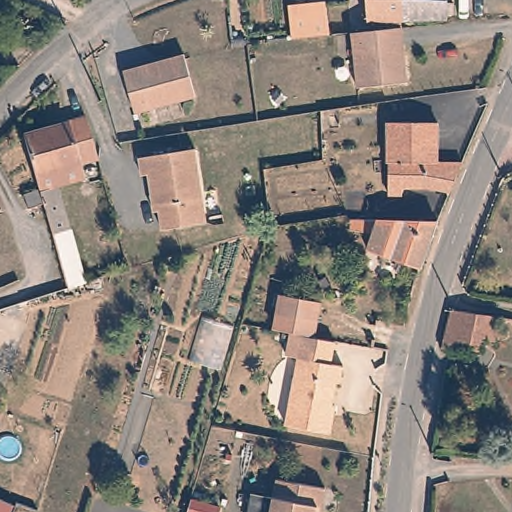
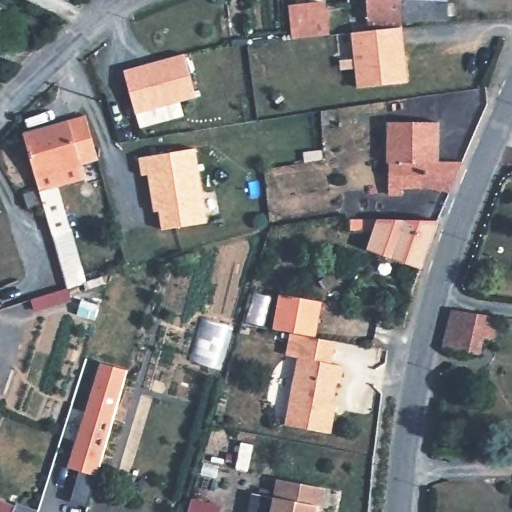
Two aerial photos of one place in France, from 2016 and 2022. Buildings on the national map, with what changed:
unchanged [(367,20),(366,0),(403,0),(404,21),(367,20)]
unchanged [(447,20),(405,21),(404,21),(403,0),(448,0),(447,20)]
unchanged [(329,32),(329,35),(292,39),(289,8),(325,4),(329,32)]
unchanged [(351,33),(401,27),(403,44),(398,45),(399,55),(395,59),(396,64),(405,63),(407,82),(357,87),(351,33)]
unchanged [(195,97),(169,104),(135,113),(130,96),(123,70),(140,66),(161,60),(184,54),(195,97)]
unchanged [(23,134),(85,116),(95,149),(97,158),(78,164),(83,179),(57,186),(69,229),(51,234),(23,134)]
unchanged [(432,161),(457,162),(445,192),(444,192),(421,186),(397,186),(397,194),(384,193),(384,162),(383,162),(383,122),(432,122),(432,161)]
unchanged [(195,148),(206,222),(162,229),(153,173),(142,175),(139,157),(195,148)]
unchanged [(416,268),(362,249),(368,232),(346,228),(346,218),(432,221),(416,268)]
unchanged [(51,234),(69,229),(84,282),(66,288),(51,234)]
unchanged [(322,321),(281,313),(284,294),(326,302),(322,321)]
unchanged [(495,342),(472,338),(469,353),(448,349),(441,348),(451,309),(499,317),(495,342)]
unchanged [(290,424),(303,357),(291,354),(295,333),(340,341),(336,363),(348,365),(345,382),(342,382),(336,413),(339,413),(335,433),(290,424)]
new [(66,466),(70,454),(101,362),(129,370),(101,463),(97,475),(88,506),(70,501),(79,469),(66,466)]
unchanged [(274,493),(277,479),(325,488),(321,507),(318,506),(317,512),(248,512),(253,488),(274,493)]

